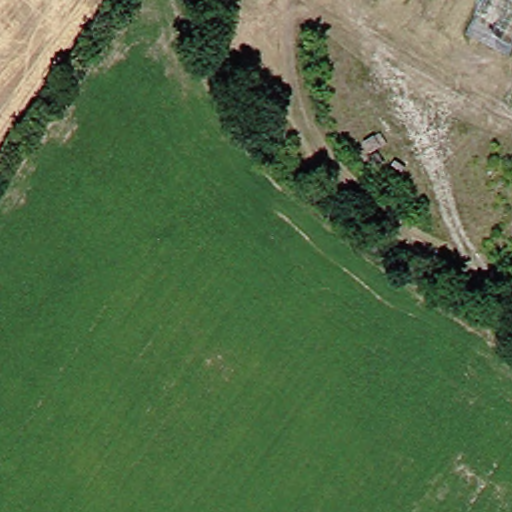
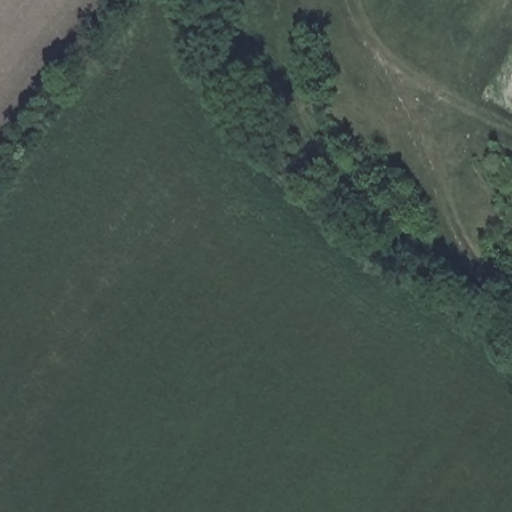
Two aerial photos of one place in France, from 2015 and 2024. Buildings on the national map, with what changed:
demolished [(463,30),(479,0),(512,0),(512,45),(507,55),(463,30)]

